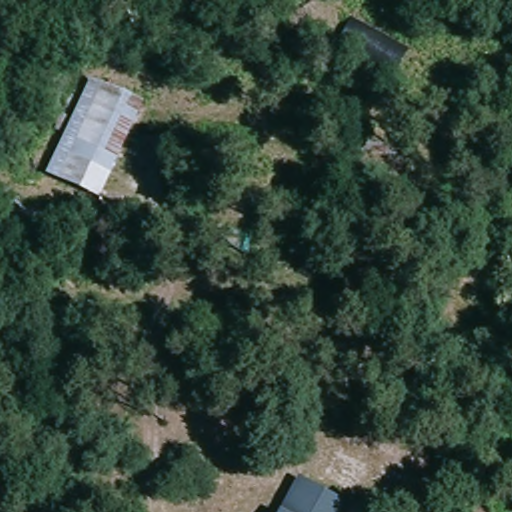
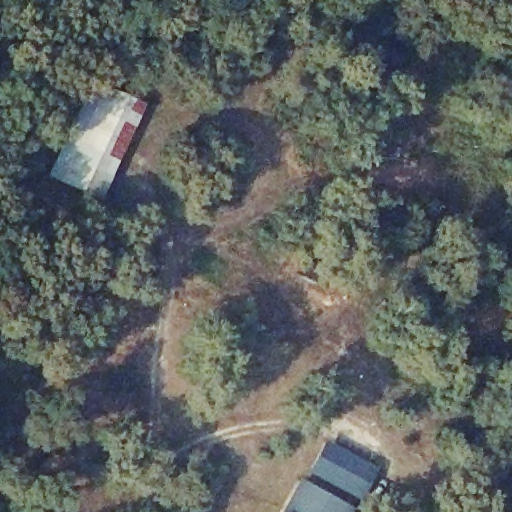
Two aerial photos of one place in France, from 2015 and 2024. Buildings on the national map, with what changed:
unchanged [(56,177),(99,81),(140,100),(97,200),(56,177)]
new [(323,438),(376,467),(359,498),(305,470),(323,438)]
unchanged [(295,475),(348,507),(345,512),(275,512),(295,475)]

